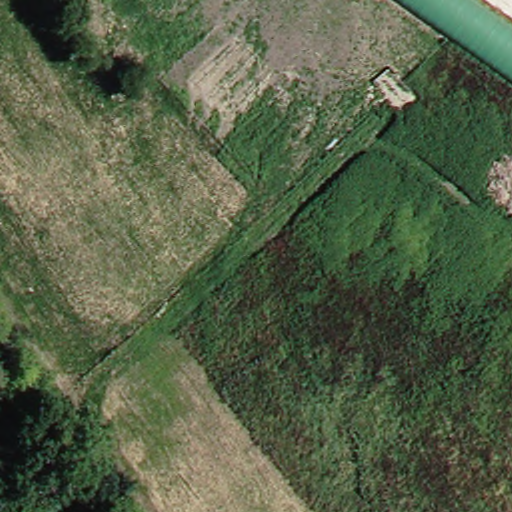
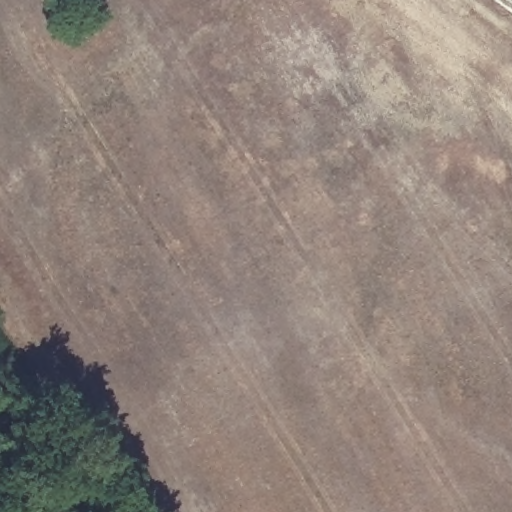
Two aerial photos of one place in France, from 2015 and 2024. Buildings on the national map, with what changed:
demolished [(512,37),(512,83),(390,0),(458,0),(512,37)]

